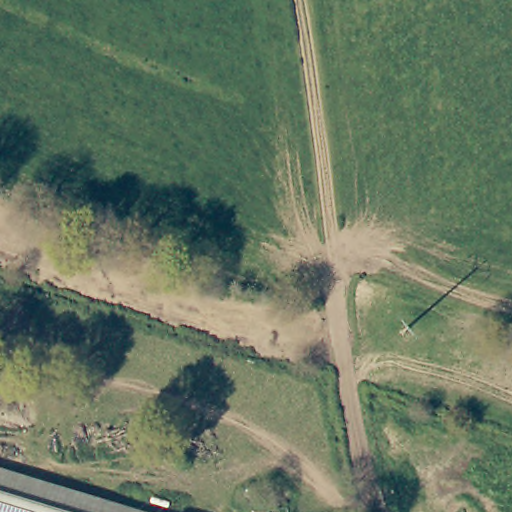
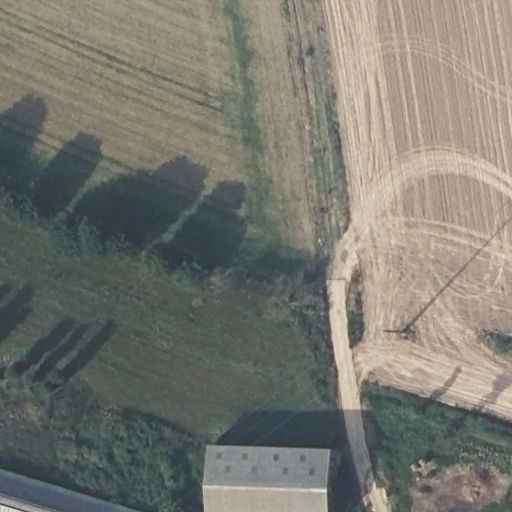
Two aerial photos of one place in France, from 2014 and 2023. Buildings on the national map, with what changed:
new [(212,445),(338,449),(336,512),(210,512),(212,445)]
unchanged [(141,512),(0,512),(0,469),(141,512)]

